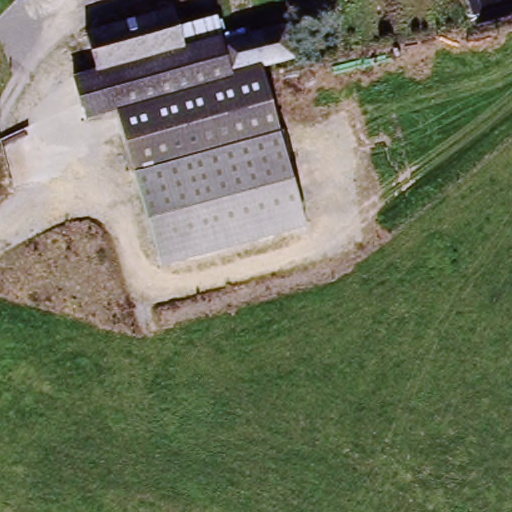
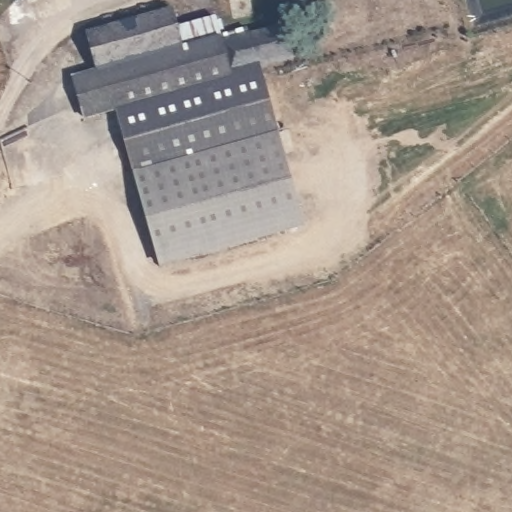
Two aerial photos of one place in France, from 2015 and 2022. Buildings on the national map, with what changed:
unchanged [(16,3),(15,0),(25,0),(16,3)]
unchanged [(85,45),(170,21),(176,41),(212,31),(218,49),(95,83),(85,45)]
unchanged [(229,89),(218,49),(250,40),(299,215),(154,255),(116,120),(229,89)]
unchanged [(85,129),(73,90),(95,83),(218,49),(229,89),(116,120),(85,129)]

